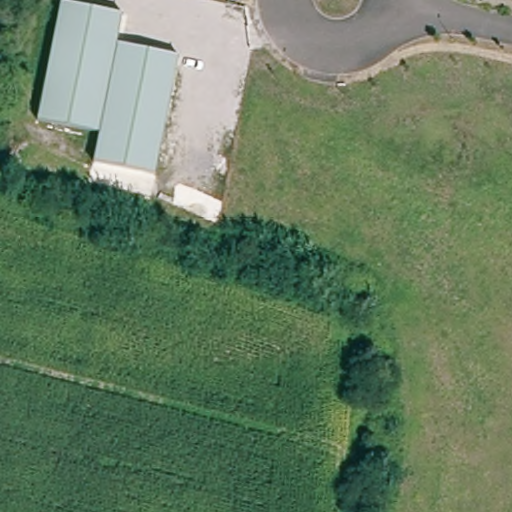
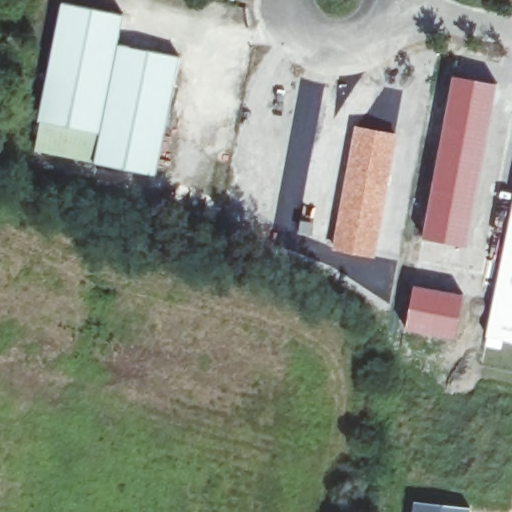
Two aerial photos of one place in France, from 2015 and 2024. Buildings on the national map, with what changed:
unchanged [(61,2),(122,14),(117,44),(179,56),(155,173),(93,162),(100,133),(38,120),(61,2)]
new [(451,72),(497,82),(466,245),(420,237),(451,72)]
new [(354,124),(398,132),(374,257),(330,248),(354,124)]
new [(486,336),(512,208),(512,341),(486,336)]
new [(412,282),(465,293),(455,338),(403,329),(412,282)]
new [(470,507),(470,512),(414,512),(415,501),(470,507)]

